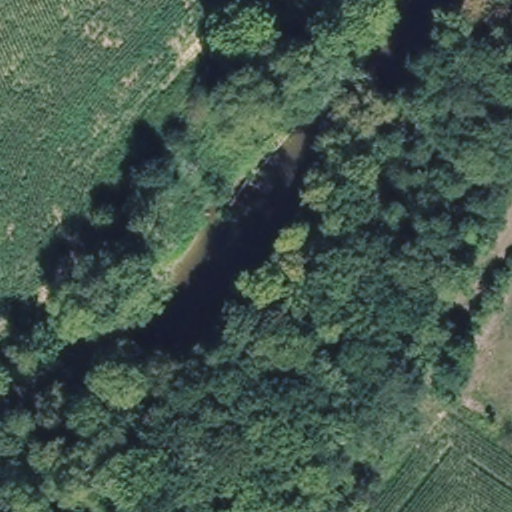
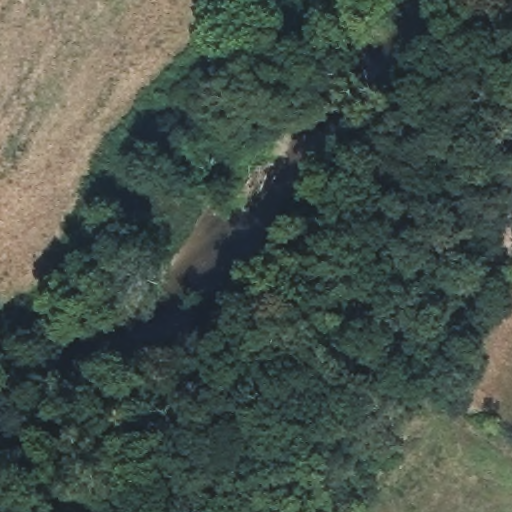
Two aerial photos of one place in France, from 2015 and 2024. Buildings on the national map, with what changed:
unchanged [(411,316),(427,330),(414,346),(397,334),(411,316)]

